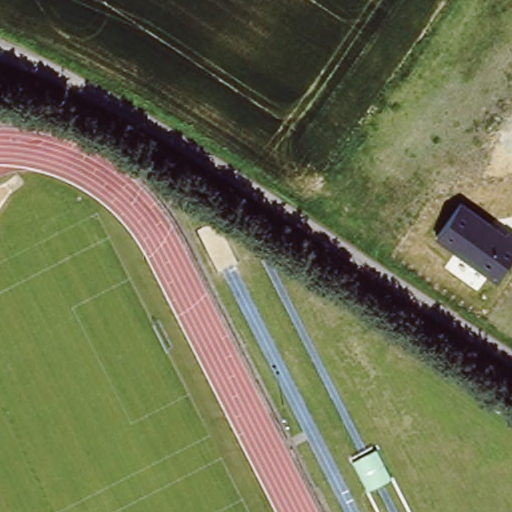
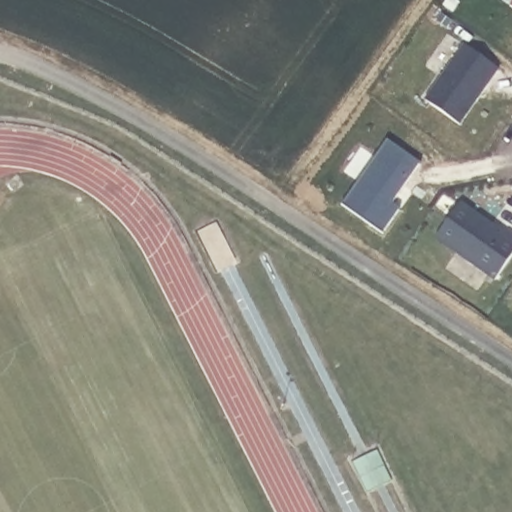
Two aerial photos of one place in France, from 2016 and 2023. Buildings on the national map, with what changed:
new [(510,6),(512,4),(512,7),(510,6)]
new [(465,45),(500,70),(460,124),(425,100),(465,45)]
new [(394,204),(400,209),(383,233),(343,205),(389,140),(422,163),(394,204)]
unchanged [(436,237),(461,202),(512,237),(512,252),(495,276),(436,237)]

